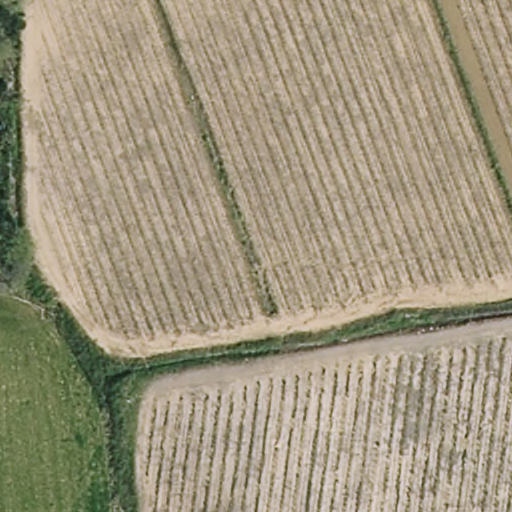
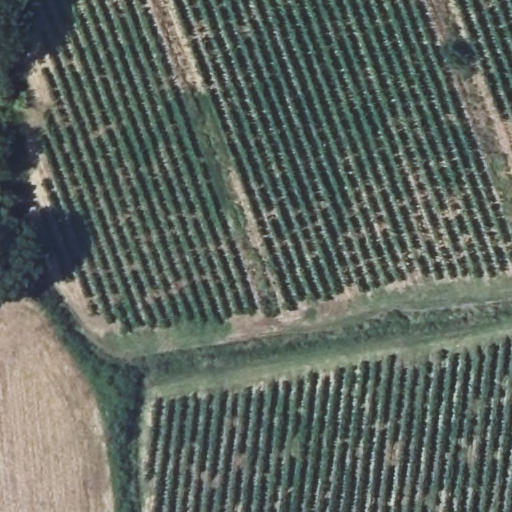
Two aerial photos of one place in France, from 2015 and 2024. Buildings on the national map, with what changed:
[]

